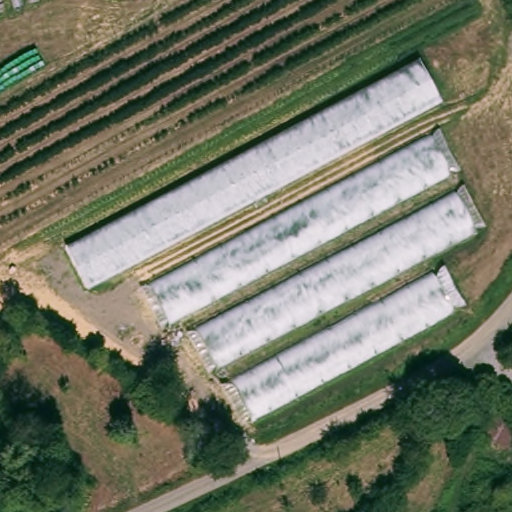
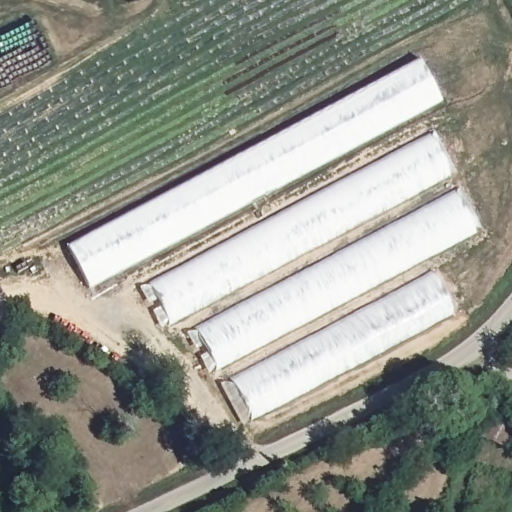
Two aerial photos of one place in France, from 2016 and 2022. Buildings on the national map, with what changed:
unchanged [(440,100),(88,285),(69,247),(420,62),(440,100)]
unchanged [(448,171),(170,322),(151,286),(430,137),(448,171)]
unchanged [(473,227),(215,366),(197,330),(456,194),(473,227)]
unchanged [(452,307),(251,416),(233,382),(433,276),(452,307)]

